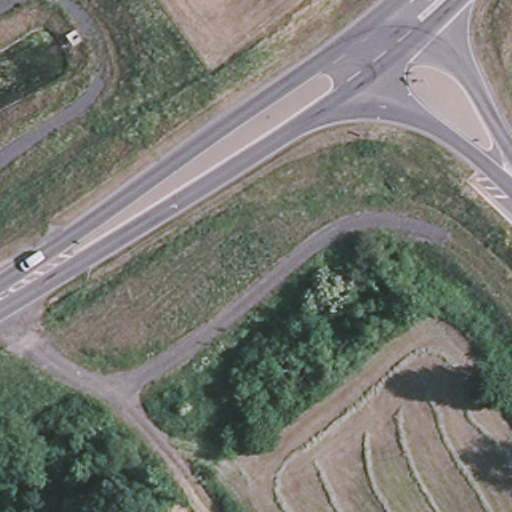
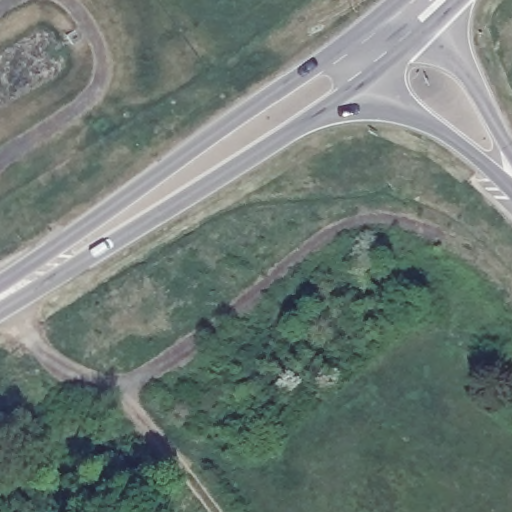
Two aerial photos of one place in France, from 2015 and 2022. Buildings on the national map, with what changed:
[]

